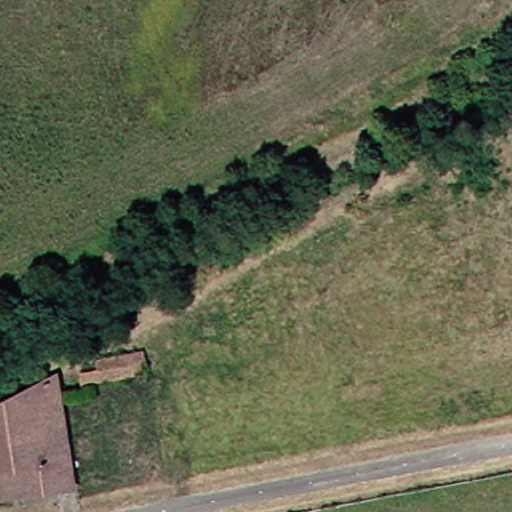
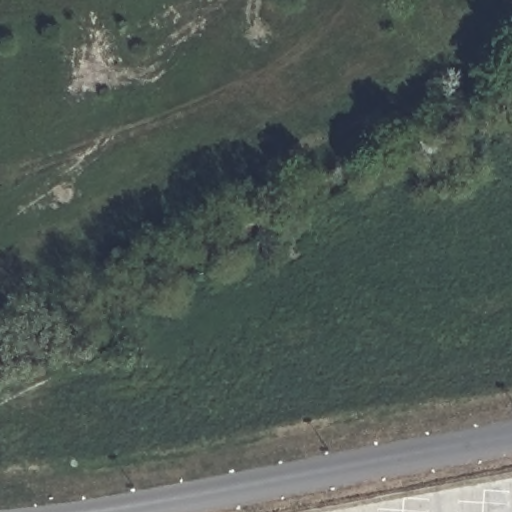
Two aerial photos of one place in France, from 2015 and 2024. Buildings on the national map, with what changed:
demolished [(44,393),(59,484),(22,491),(4,493),(0,469),(0,397),(57,370),(61,390),(44,393)]

